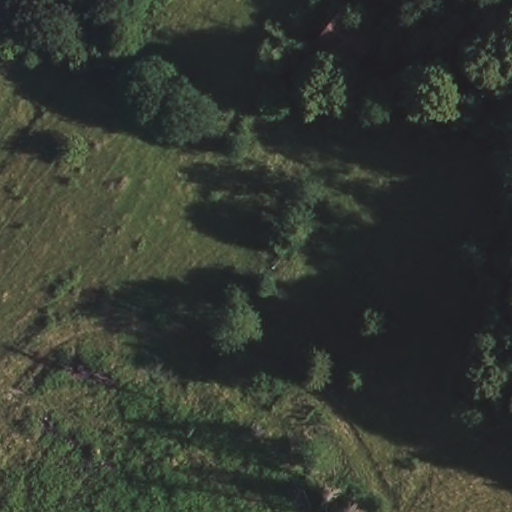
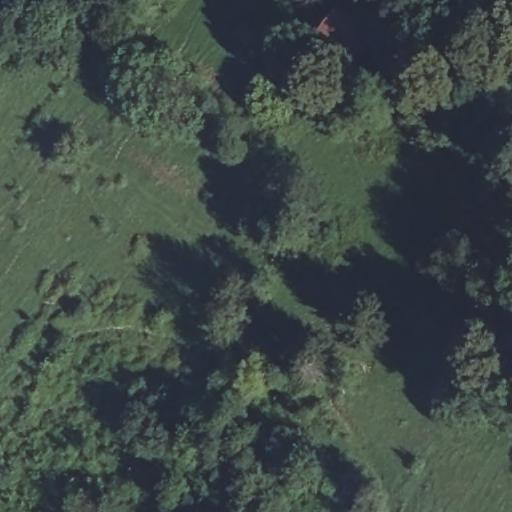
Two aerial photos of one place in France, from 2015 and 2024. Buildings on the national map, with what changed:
unchanged [(347,65),(324,37),(348,12),(372,42),(347,65)]
unchanged [(445,114),(418,82),(445,62),(470,94),(445,114)]

